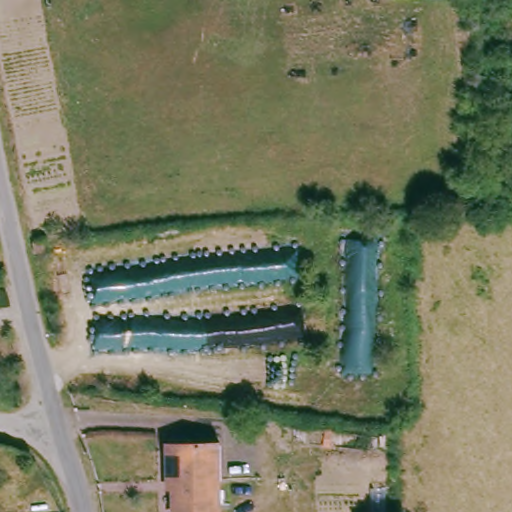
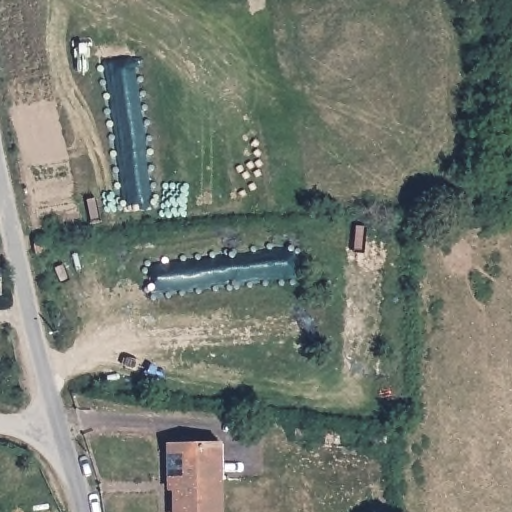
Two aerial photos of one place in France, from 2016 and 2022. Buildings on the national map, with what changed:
unchanged [(170,483),(165,481),(163,445),(209,445),(209,482),(215,483),(215,512),(170,512),(170,483)]

